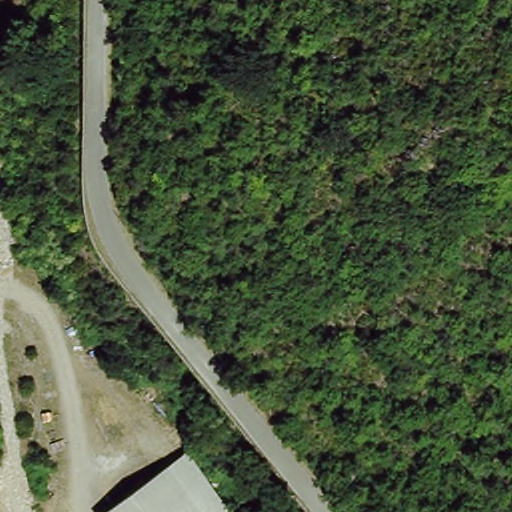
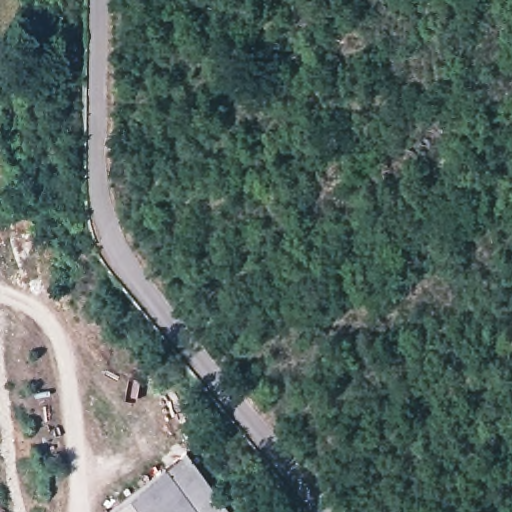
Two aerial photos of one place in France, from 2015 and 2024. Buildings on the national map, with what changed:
unchanged [(200,458),(232,512),(112,512),(110,508),(200,458)]

